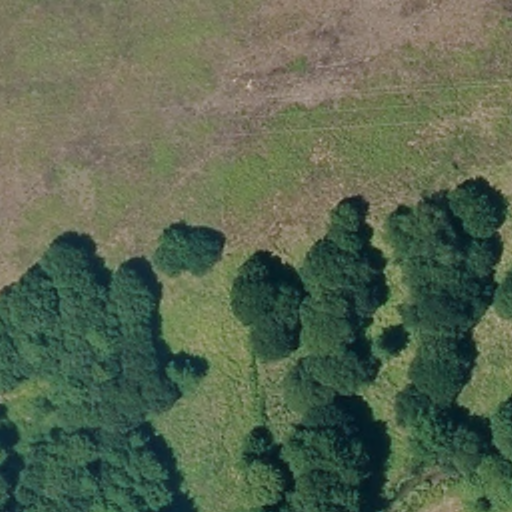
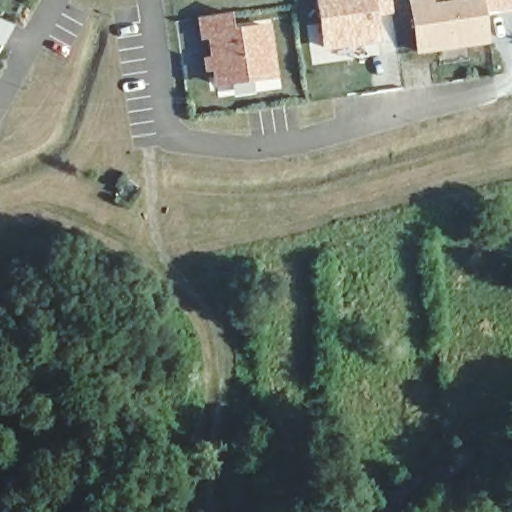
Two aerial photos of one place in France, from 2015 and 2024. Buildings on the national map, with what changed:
new [(374,13),(378,40),(325,48),(319,0),(390,0),(392,11),(374,13)]
new [(454,0),(512,0),(512,8),(486,12),(491,43),(418,54),(408,0),(434,0),(435,2),(454,0)]
new [(232,12),(234,29),(270,23),(278,78),(215,87),(213,71),(205,73),(203,59),(210,57),(208,39),(200,40),(197,18),(232,12)]

